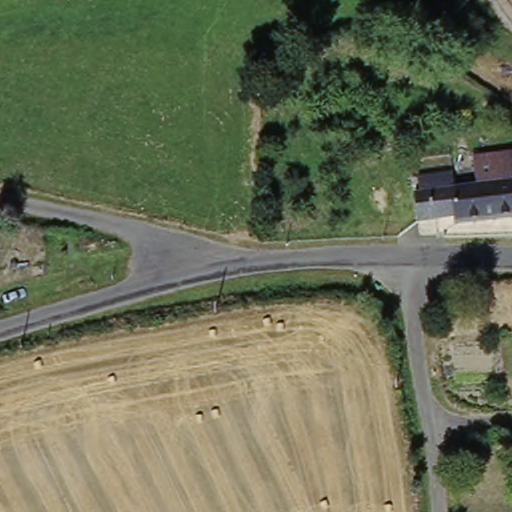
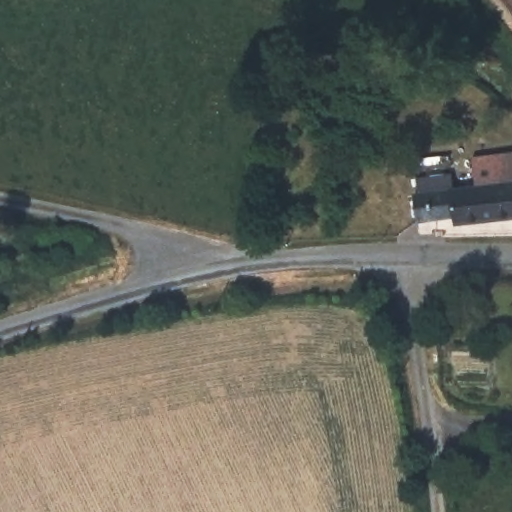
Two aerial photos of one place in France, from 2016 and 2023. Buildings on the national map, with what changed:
unchanged [(456,217),(422,221),(420,194),(479,187),(477,155),(512,152),(512,218),(457,225),(456,217)]

